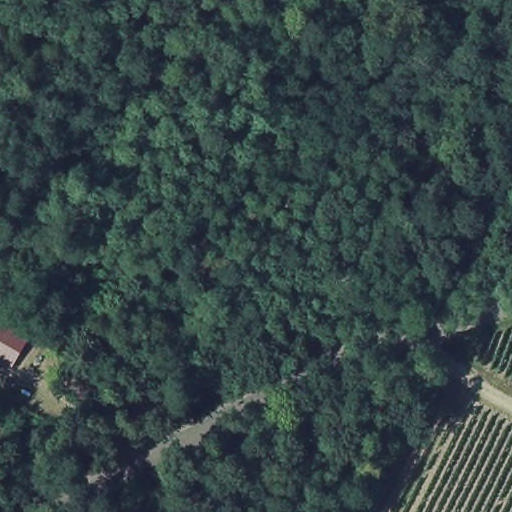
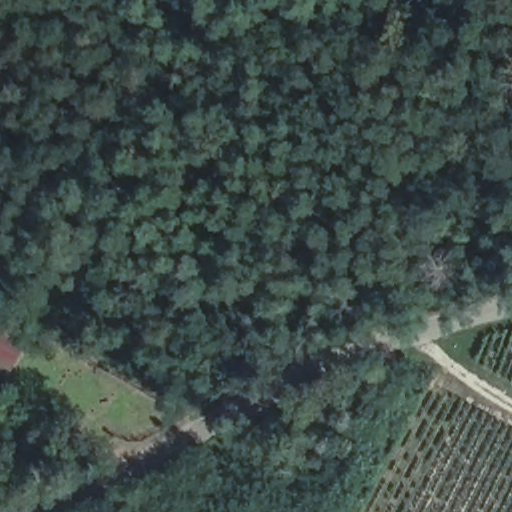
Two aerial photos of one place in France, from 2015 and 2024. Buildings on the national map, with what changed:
unchanged [(12,370),(0,364),(0,325),(27,341),(12,370)]

